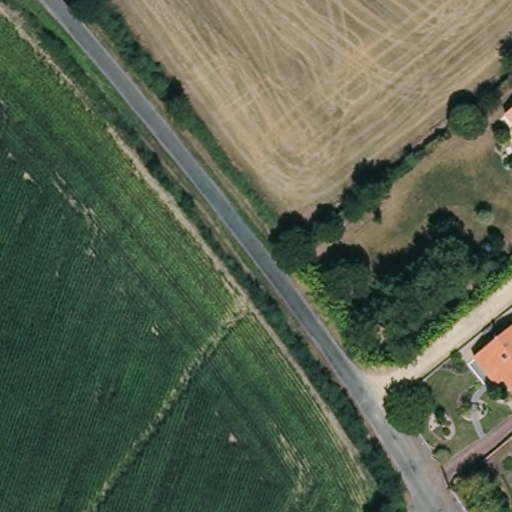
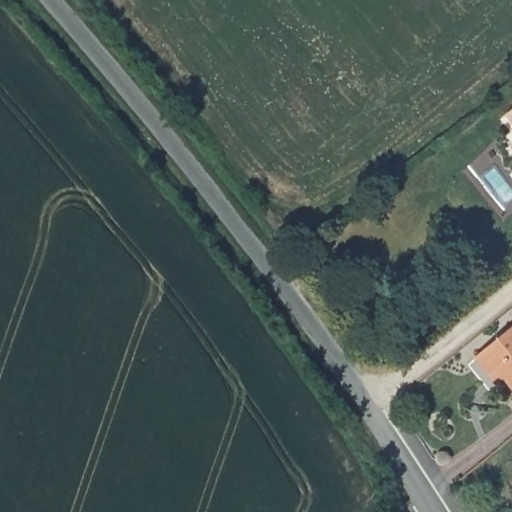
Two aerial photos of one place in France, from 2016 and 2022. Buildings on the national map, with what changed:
unchanged [(512,109),(512,120),(506,114),(512,109)]
unchanged [(475,357),(512,326),(512,388),(505,379),(497,385),(489,375),(475,357)]

